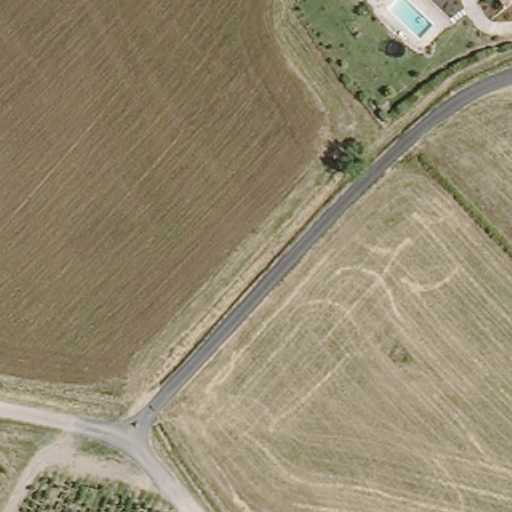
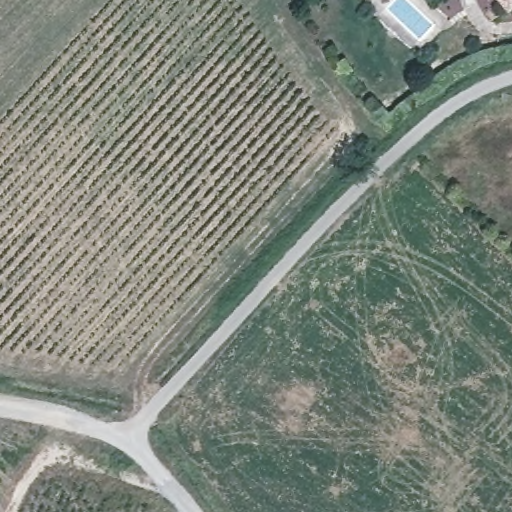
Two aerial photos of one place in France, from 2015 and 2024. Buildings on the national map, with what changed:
unchanged [(507,12),(497,0),(512,0),(512,7),(507,12)]

